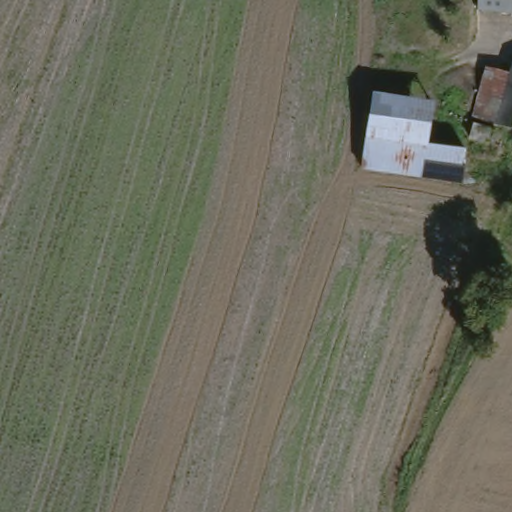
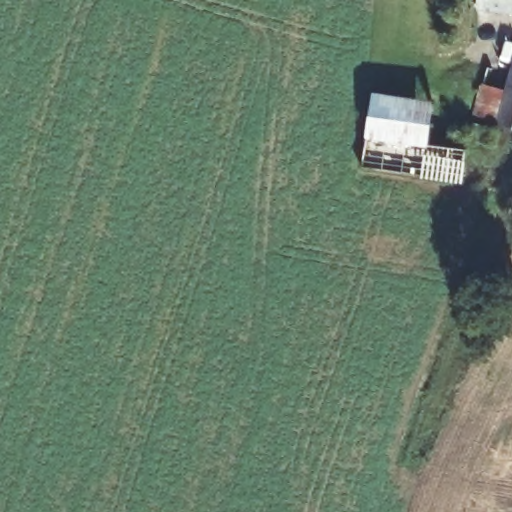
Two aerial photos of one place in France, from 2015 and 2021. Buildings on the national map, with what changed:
unchanged [(478,0),(512,0),(512,17),(476,13),(478,0)]
unchanged [(481,71),(503,78),(507,65),(512,66),(512,134),(466,121),(481,71)]
unchanged [(425,145),(366,135),(372,98),(372,96),(430,106),(425,145)]
unchanged [(464,152),(459,185),(361,169),(366,135),(425,145),(464,152)]

